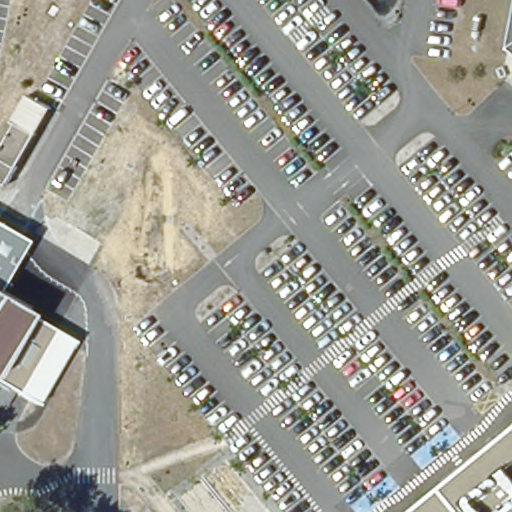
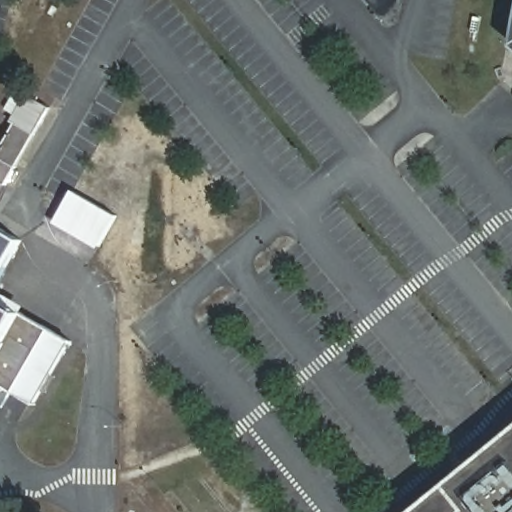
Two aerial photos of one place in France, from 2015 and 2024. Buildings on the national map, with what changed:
unchanged [(0,153),(17,125),(14,122),(29,95),(53,108),(10,185),(0,180),(0,153)]
new [(117,216),(99,249),(55,224),(74,191),(117,216)]
unchanged [(0,280),(0,226),(25,241),(0,280)]
unchanged [(76,343),(40,406),(14,392),(2,413),(0,412),(0,301),(25,316),(76,343)]
unchanged [(512,434),(512,512),(417,512),(512,434)]

